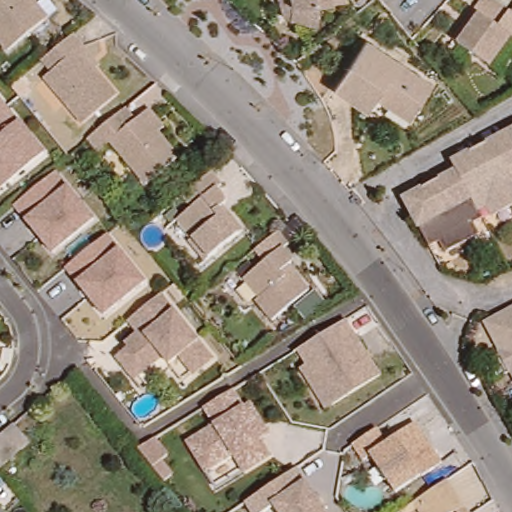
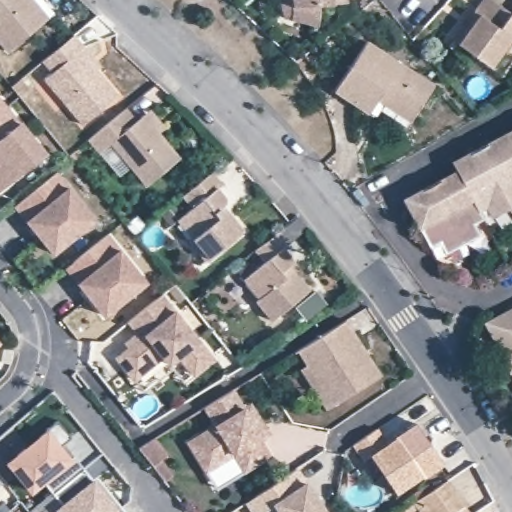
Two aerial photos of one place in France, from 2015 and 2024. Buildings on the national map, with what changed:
unchanged [(40,19),(4,50),(0,45),(0,0),(32,0),(44,15),(40,19)]
unchanged [(316,10),(311,28),(283,21),(285,12),(285,2),(284,0),(337,0),(338,6),(316,10)]
unchanged [(491,65),(456,39),(466,24),(477,9),(483,0),(496,0),(512,12),(512,37),(491,65)]
unchanged [(100,62),(95,66),(117,94),(82,123),(44,77),(51,70),(42,60),(47,55),(75,31),(86,45),(100,62)]
unchanged [(365,41),(429,85),(407,119),(387,105),(389,101),(378,94),(365,111),(331,89),(365,41)]
unchanged [(0,190),(0,105),(41,157),(0,190)]
unchanged [(144,112),(151,107),(164,125),(158,130),(180,155),(146,183),(111,141),(100,150),(89,137),(126,106),(137,119),(144,112)]
unchanged [(509,128),(512,126),(512,133),(509,128)]
unchanged [(427,183),(450,170),(446,162),(468,150),(477,145),(509,128),(512,133),(512,202),(488,216),(482,205),(473,210),(477,218),(468,224),(474,235),(440,253),(434,241),(425,246),(398,199),(422,186),(427,183)]
unchanged [(61,170),(71,184),(100,220),(57,251),(32,218),(17,204),(61,170)]
unchanged [(223,206),(227,210),(242,230),(202,261),(186,242),(190,239),(175,221),(189,210),(181,199),(212,173),(222,185),(217,189),(228,202),(223,206)]
unchanged [(110,231),(121,245),(148,280),(111,308),(85,278),(70,265),(110,231)]
unchanged [(284,249),(295,262),(290,266),(294,271),(312,293),(274,325),(257,303),(260,300),(244,281),(265,263),(256,252),(279,232),(289,245),(284,249)]
unchanged [(128,345),(127,340),(139,331),(133,317),(166,291),(178,305),(203,337),(215,356),(192,372),(178,357),(169,361),(167,358),(137,377),(118,353),(128,345)]
unchanged [(506,374),(496,356),(502,352),(489,328),(486,323),(507,312),(512,310),(512,370),(506,374)]
unchanged [(377,378),(322,410),(293,360),(347,326),(377,378)]
unchanged [(272,455),(240,475),(229,455),(201,472),(181,442),(210,424),(202,412),(235,392),(272,455)]
new [(51,493),(42,482),(30,492),(16,475),(26,468),(16,455),(45,431),(44,430),(56,420),(70,437),(58,447),(68,459),(72,456),(82,468),(51,493)]
unchanged [(440,463),(388,500),(351,446),(377,429),(385,442),(411,423),(440,463)]
demolished [(33,442),(0,471),(0,439),(18,424),(33,442)]
new [(154,438),(167,455),(159,460),(171,475),(164,481),(137,448),(154,438)]
new [(55,510),(60,505),(51,493),(82,468),(101,492),(105,488),(124,512),(57,512),(55,510)]
unchanged [(320,512),(267,512),(266,510),(262,512),(250,512),(245,505),(293,471),(320,512)]
new [(92,480),(96,477),(105,488),(101,492),(92,480)]
unchanged [(407,507),(443,480),(463,512),(410,512),(407,507)]

